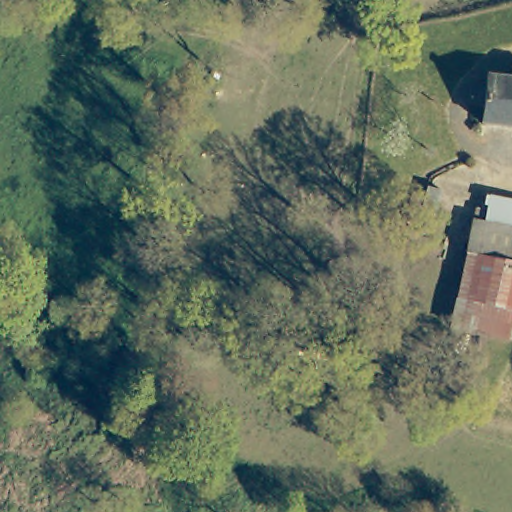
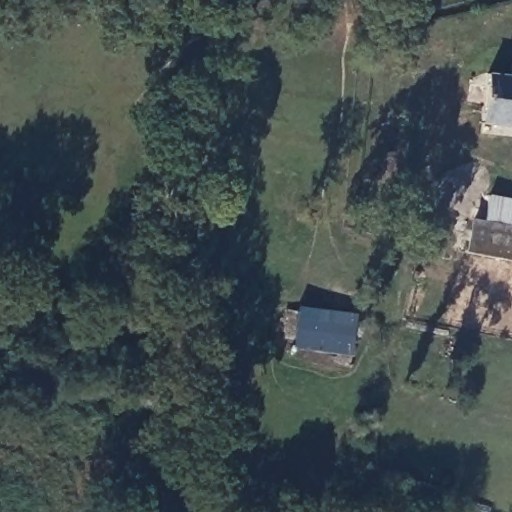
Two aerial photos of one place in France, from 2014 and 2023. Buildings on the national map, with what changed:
unchanged [(432,66),(399,60),(401,46),(435,50),(432,66)]
unchanged [(467,80),(482,84),(485,71),(505,75),(508,60),(512,61),(512,126),(476,120),(480,105),(462,102),(467,80)]
unchanged [(358,92),(355,105),(340,102),(345,89),(358,92)]
unchanged [(408,194),(421,196),(415,222),(400,218),(408,194)]
unchanged [(472,207),(485,210),(488,197),(512,202),(512,263),(463,252),(472,207)]
unchanged [(427,323),(431,302),(451,306),(463,252),(512,263),(512,304),(504,339),(427,323)]
new [(293,306),(352,314),(347,353),(288,346),(293,306)]

